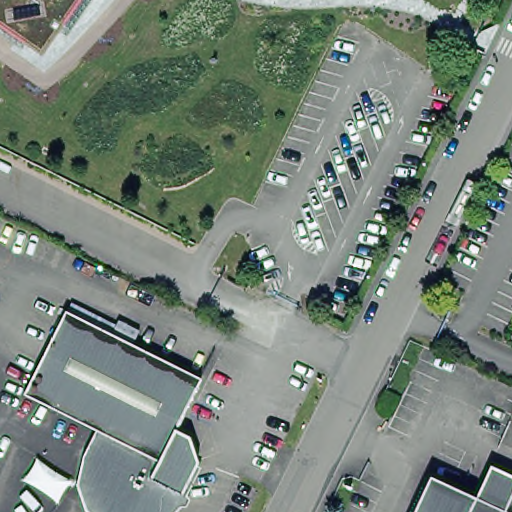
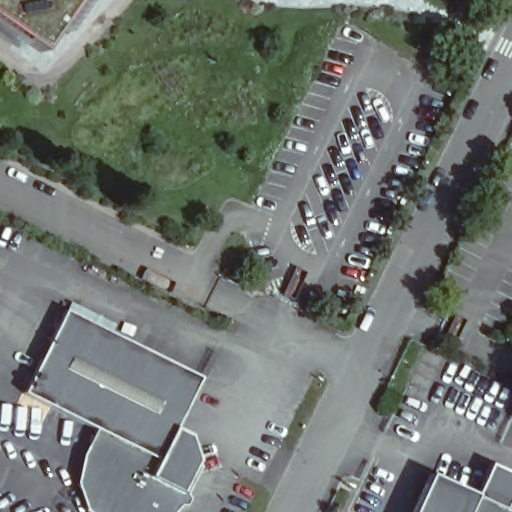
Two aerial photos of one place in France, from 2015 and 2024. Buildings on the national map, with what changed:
unchanged [(67,28),(61,24),(42,51),(0,24),(0,0),(86,0),(67,28)]
unchanged [(176,434),(189,440),(197,467),(179,505),(173,512),(92,512),(82,488),(88,461),(100,437),(24,399),(65,316),(201,382),(176,434)]
unchanged [(415,512),(432,475),(477,496),(491,466),(512,476),(512,512),(415,512)]

